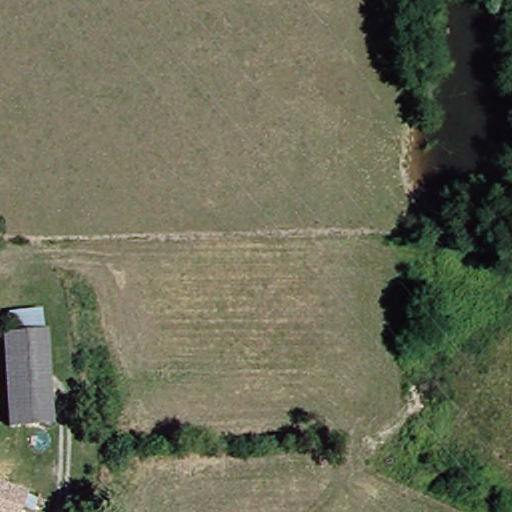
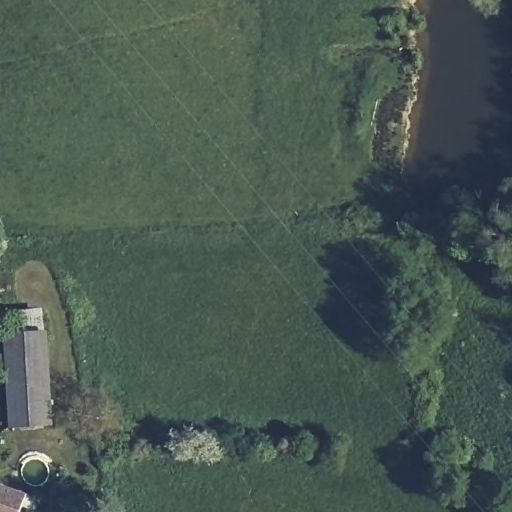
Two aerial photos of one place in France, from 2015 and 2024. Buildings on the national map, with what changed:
unchanged [(49,330),(52,330),(57,426),(14,428),(12,407),(0,408),(0,389),(10,387),(9,335),(16,335),(14,312),(48,311),(49,330)]
unchanged [(0,476),(0,457),(39,467),(34,486),(32,485),(0,476)]
unchanged [(46,506),(36,503),(34,512),(0,512),(0,476),(32,485),(34,486),(48,490),(46,506)]

